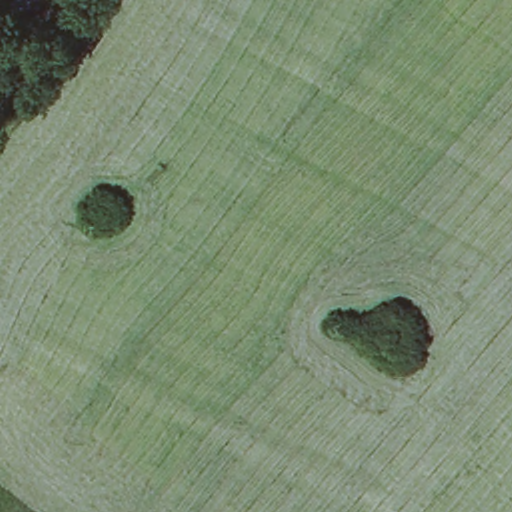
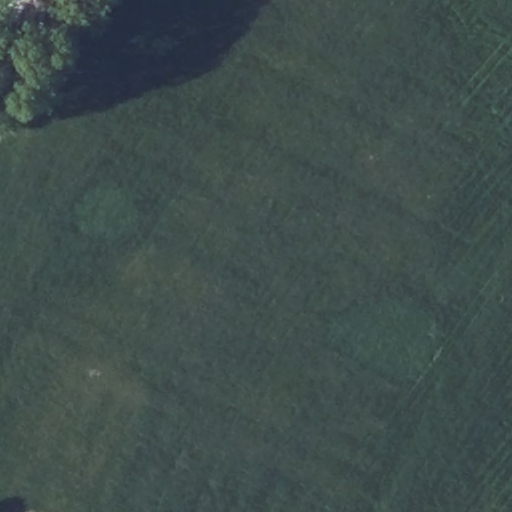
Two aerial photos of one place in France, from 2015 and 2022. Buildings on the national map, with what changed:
unchanged [(7,6),(14,0),(55,0),(24,24),(7,6)]

